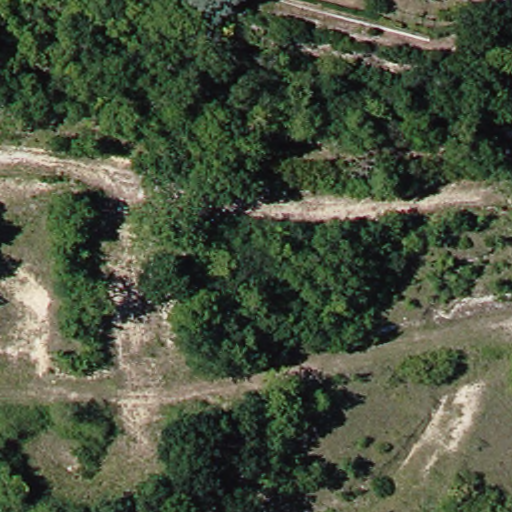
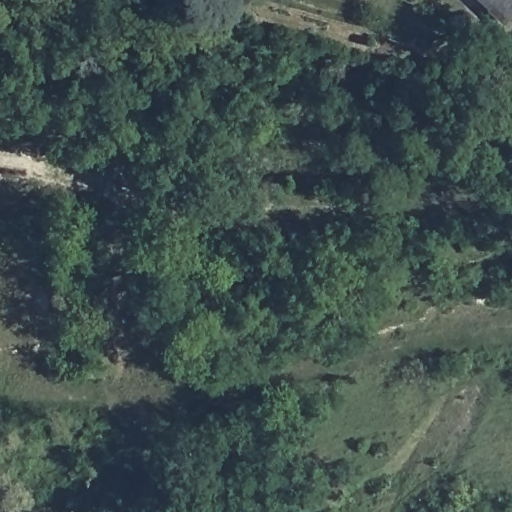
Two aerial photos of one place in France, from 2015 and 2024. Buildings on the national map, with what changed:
unchanged [(512,0),(512,16),(491,0),(512,0)]

